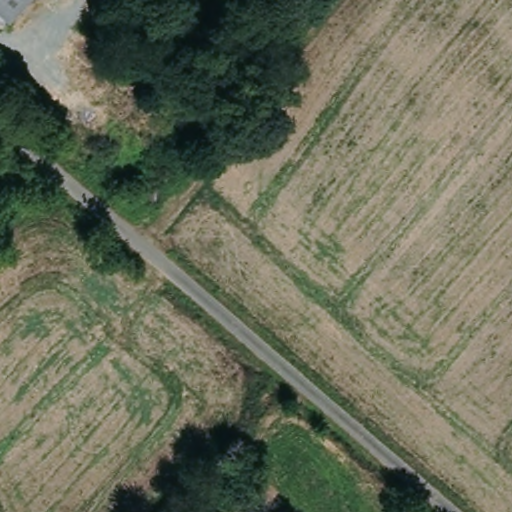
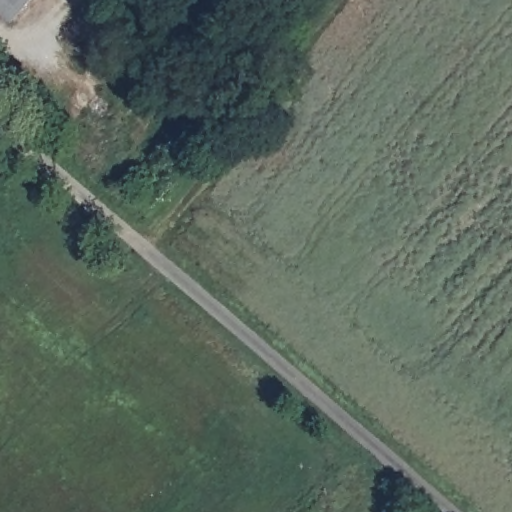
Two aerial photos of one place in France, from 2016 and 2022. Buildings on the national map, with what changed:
unchanged [(0,16),(0,0),(26,0),(7,22),(0,16)]

